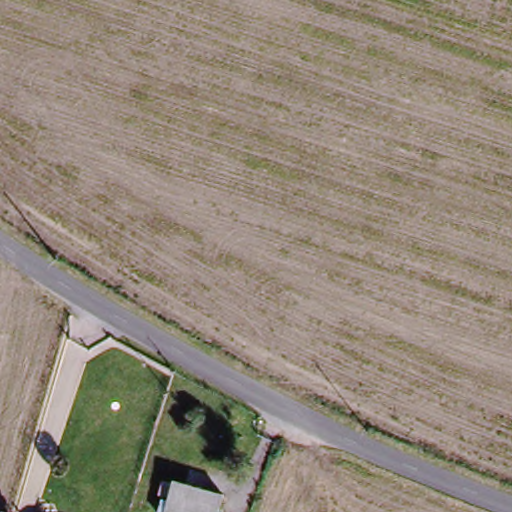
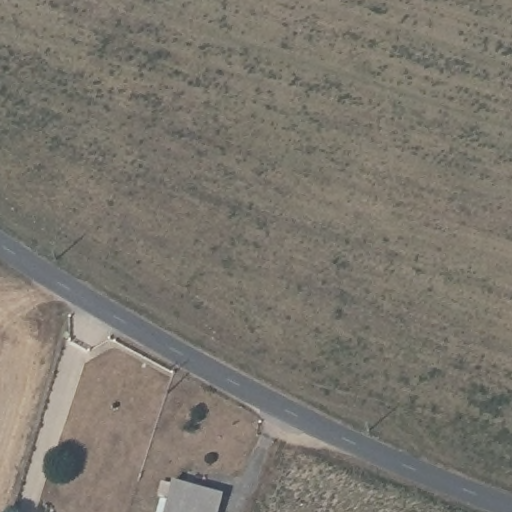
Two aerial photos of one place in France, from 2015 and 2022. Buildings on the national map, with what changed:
unchanged [(169,480),(223,498),(220,512),(163,512),(169,480)]

